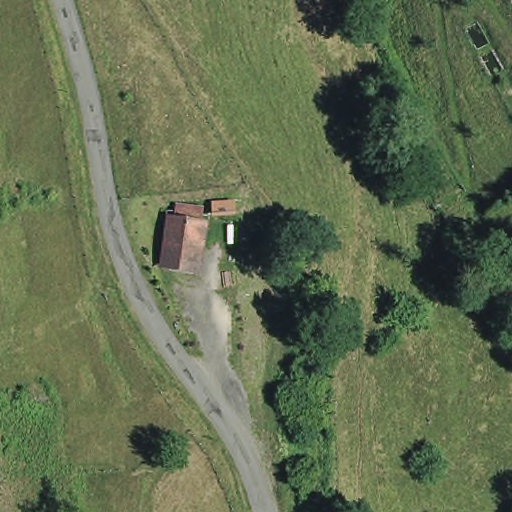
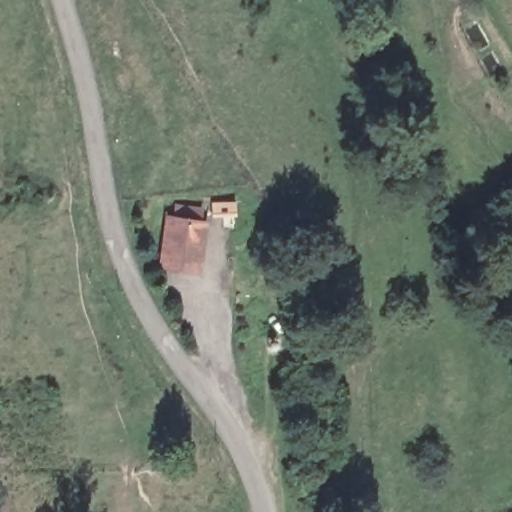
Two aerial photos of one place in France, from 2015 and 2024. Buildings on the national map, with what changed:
unchanged [(201,275),(162,270),(173,220),(208,221),(201,275)]

